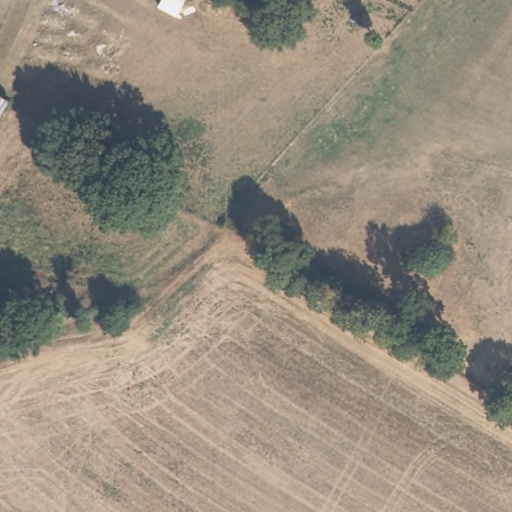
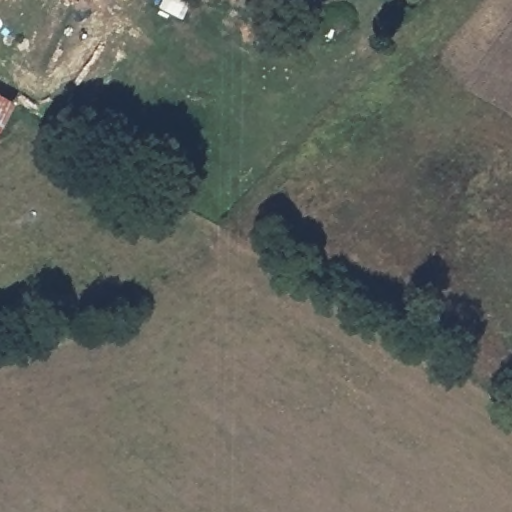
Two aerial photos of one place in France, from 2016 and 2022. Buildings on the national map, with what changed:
unchanged [(0,95),(10,100),(0,117),(0,95)]

